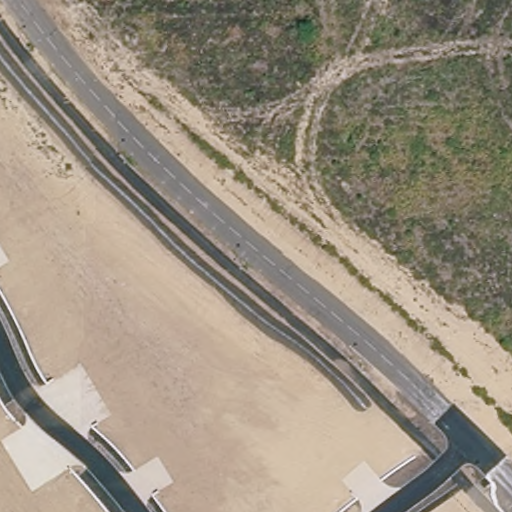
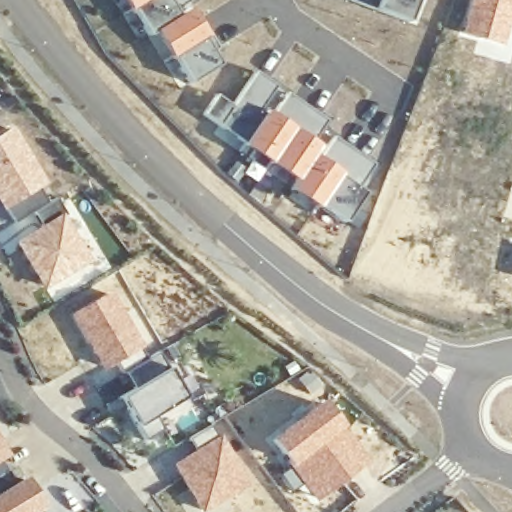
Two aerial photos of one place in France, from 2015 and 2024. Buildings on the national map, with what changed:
new [(179,15),(188,9),(219,65),(188,84),(155,31),(148,37),(124,0),(194,0),(176,10),(179,15)]
new [(346,2),(347,0),(428,0),(419,29),(346,2)]
new [(461,33),(470,0),(512,0),(512,8),(501,45),(461,33)]
new [(233,105),(255,71),(278,86),(261,112),(272,119),(289,94),(329,121),(312,145),(317,149),(312,156),(319,161),(334,137),(375,164),(359,189),(365,192),(344,222),(291,187),(298,177),(205,116),(217,96),(233,105)]
new [(40,187),(49,204),(56,200),(91,262),(42,290),(13,243),(43,225),(36,211),(15,224),(0,201),(0,134),(14,126),(47,184),(40,187)]
new [(148,359),(158,352),(170,367),(188,398),(157,416),(164,429),(145,441),(137,426),(120,398),(138,387),(127,373),(123,376),(116,364),(103,372),(70,314),(111,292),(148,359)]
new [(270,442),(321,402),(334,421),(337,418),(370,462),(317,502),(270,442)]
new [(195,450),(189,439),(214,424),(250,484),(202,508),(171,465),(195,450)]
new [(0,458),(0,449),(4,455),(0,458)]
new [(0,476),(0,459),(8,472),(0,476)]
new [(16,467),(24,476),(44,507),(37,512),(0,512),(0,476),(8,472),(16,467)]

